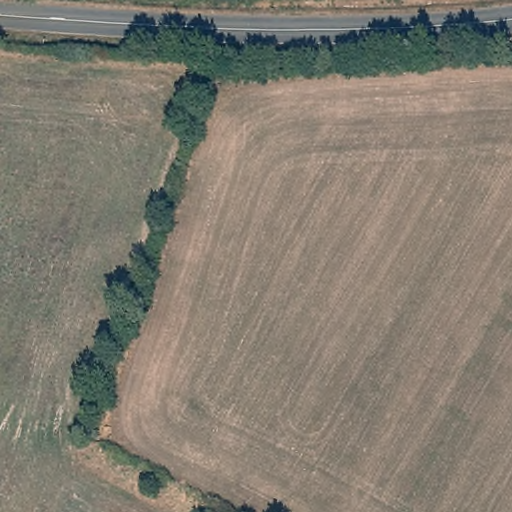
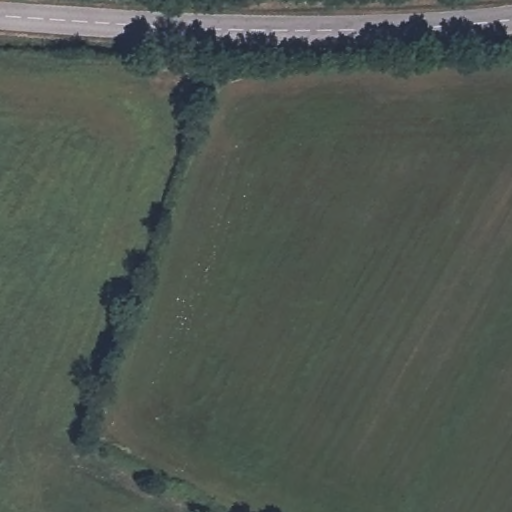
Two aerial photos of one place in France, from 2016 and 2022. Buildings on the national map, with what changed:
[]

